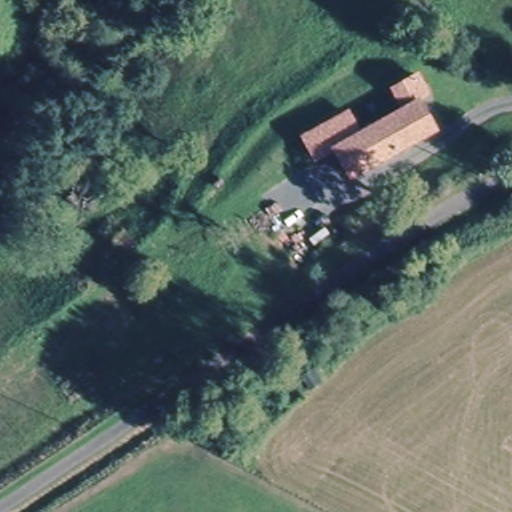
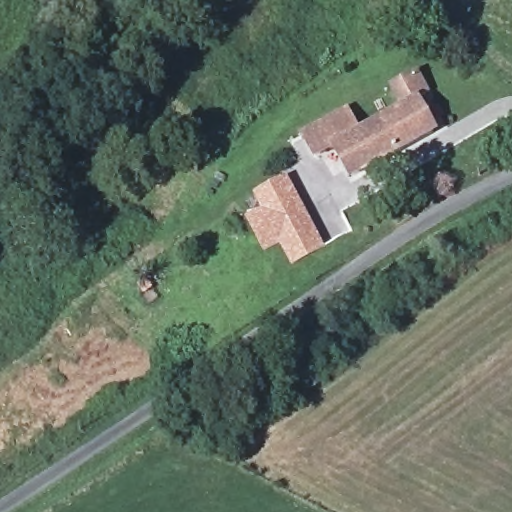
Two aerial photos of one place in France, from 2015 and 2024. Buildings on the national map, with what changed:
unchanged [(432,132),(350,177),(334,147),(315,157),(303,134),(347,110),(359,132),(405,107),(394,87),(417,75),(428,94),(416,101),(432,132)]
new [(256,196),(285,181),(320,247),(290,262),(278,239),(264,246),(248,217),(263,209),(256,196)]

